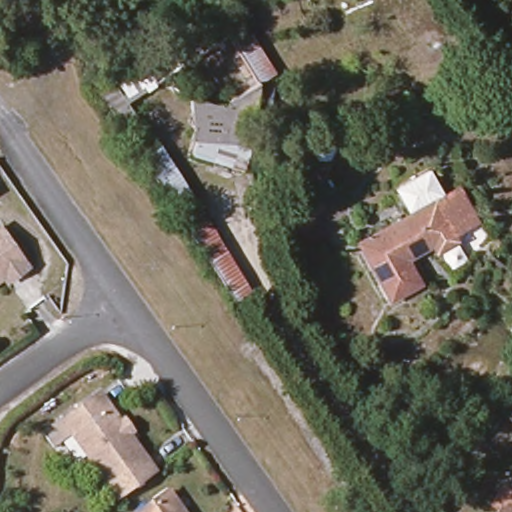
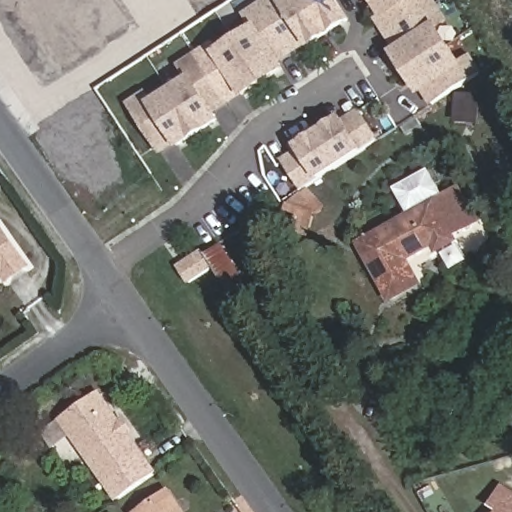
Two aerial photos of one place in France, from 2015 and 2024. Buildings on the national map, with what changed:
new [(309,49),(306,45),(281,61),(286,70),(241,97),(217,113),(221,121),(178,148),(175,144),(160,155),(128,104),(147,91),(152,99),(185,80),(177,64),(213,41),(219,49),(251,28),(243,14),(264,0),(340,0),(352,20),(309,49)]
new [(431,106),(424,94),(420,97),(391,52),(395,50),(374,19),(379,16),(370,0),(436,0),(449,22),(441,30),(460,60),(471,54),(483,72),(431,106)]
demolished [(245,171),(195,156),(199,141),(194,140),(195,129),(196,129),(194,95),(180,90),(170,76),(130,102),(115,80),(227,7),(242,31),(232,37),(263,85),(245,171)]
new [(282,160),(297,151),(294,147),(342,115),(344,118),(359,109),(380,140),(364,150),(318,179),(301,190),(282,160)]
unchanged [(442,197),(458,189),(475,221),(451,235),(454,241),(436,251),(432,245),(405,260),(419,284),(390,300),(358,243),(409,216),(394,190),(428,171),(442,197)]
unchanged [(314,236),(309,239),(295,235),(299,219),(287,216),(309,194),(328,214),(324,217),(319,220),(314,236)]
unchanged [(3,276),(0,278),(0,228),(26,266),(6,281),(3,276)]
new [(250,289),(234,301),(214,268),(188,284),(177,267),(202,250),(206,255),(222,244),(250,289)]
unchanged [(103,405),(125,435),(124,439),(127,444),(132,445),(148,468),(93,507),(83,493),(102,481),(67,431),(103,405)]
unchanged [(512,412),(512,424),(506,417),(512,412)]
new [(500,512),(490,506),(503,484),(512,490),(512,512),(501,512),(500,512)]
unchanged [(167,492),(181,512),(140,512),(167,492)]

